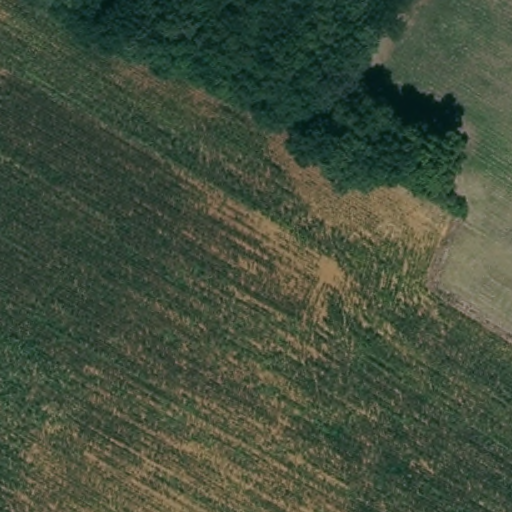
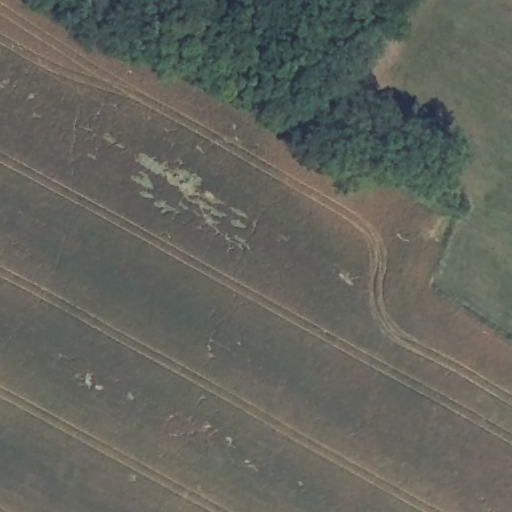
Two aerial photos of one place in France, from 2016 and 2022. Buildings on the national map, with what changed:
[]

